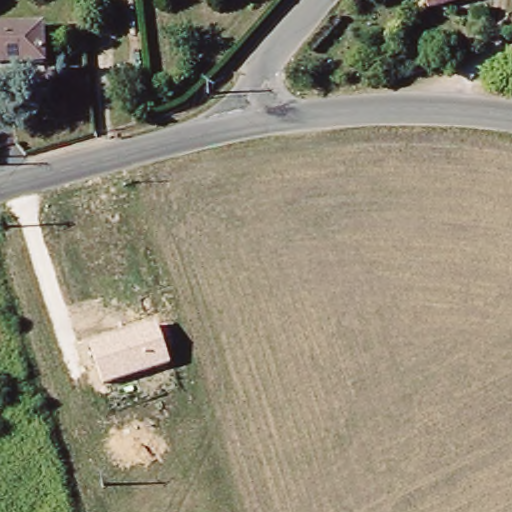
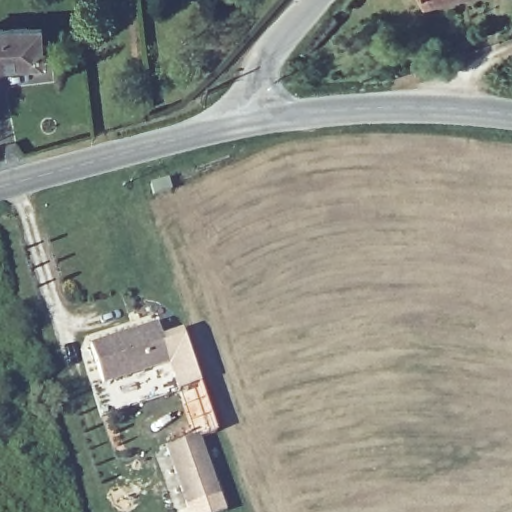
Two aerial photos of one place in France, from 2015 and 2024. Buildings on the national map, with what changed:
unchanged [(421,0),(465,0),(423,11),(421,0)]
unchanged [(0,34),(47,30),(50,64),(0,69),(0,34)]
unchanged [(170,364),(102,385),(90,343),(156,322),(170,364)]
new [(164,449),(200,436),(221,497),(185,509),(164,449)]

